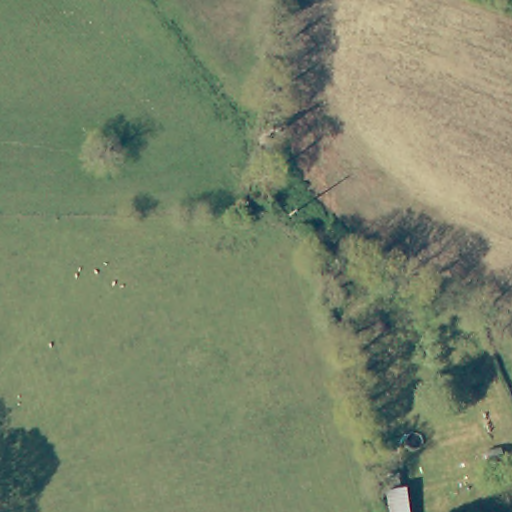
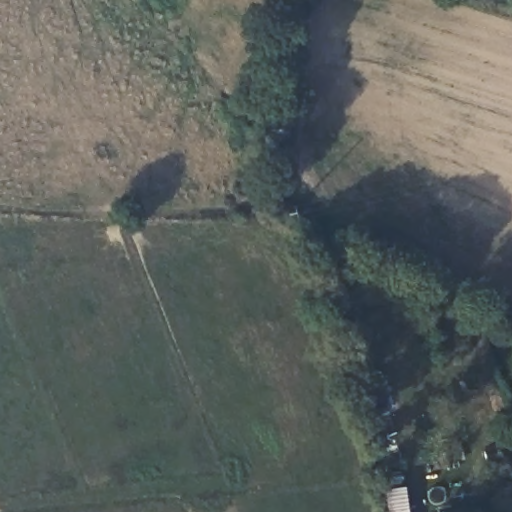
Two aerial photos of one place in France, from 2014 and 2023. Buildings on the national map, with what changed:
unchanged [(394,512),(390,490),(408,488),(412,512),(394,512)]

